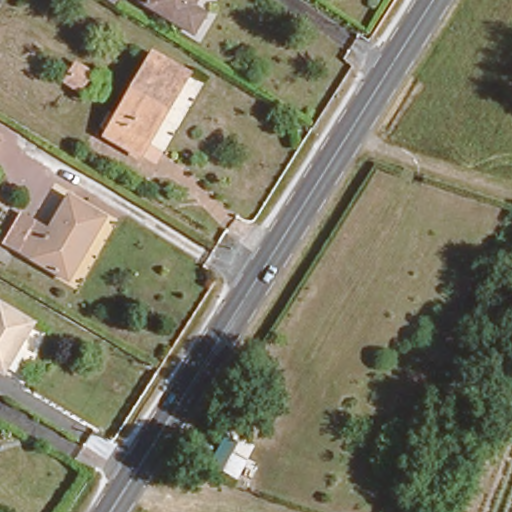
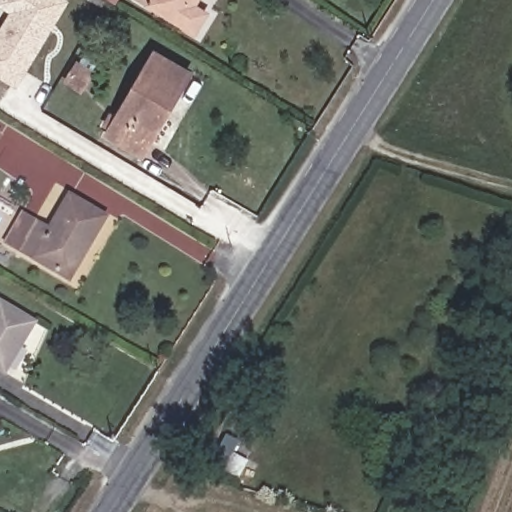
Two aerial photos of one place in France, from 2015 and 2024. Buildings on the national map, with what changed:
new [(9,13),(0,8),(0,0),(68,0),(70,1),(17,90),(0,79),(0,27),(9,13)]
unchanged [(193,31),(142,0),(197,0),(208,7),(193,31)]
unchanged [(107,127),(155,47),(189,67),(140,146),(107,127)]
new [(1,137),(0,139),(0,136),(1,137)]
unchanged [(67,277),(0,237),(0,236),(19,206),(52,222),(70,191),(110,207),(67,277)]
unchanged [(0,370),(0,299),(34,318),(2,372),(0,370)]

